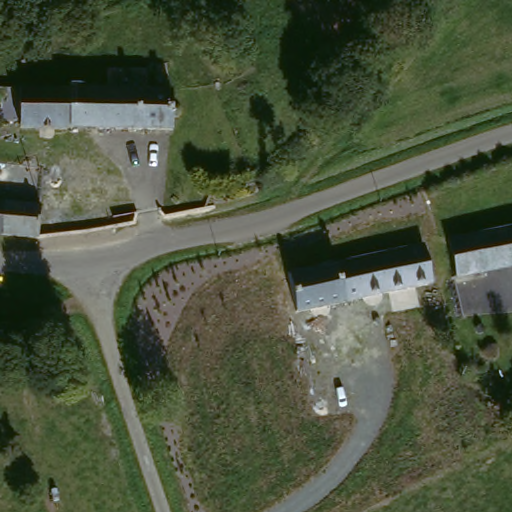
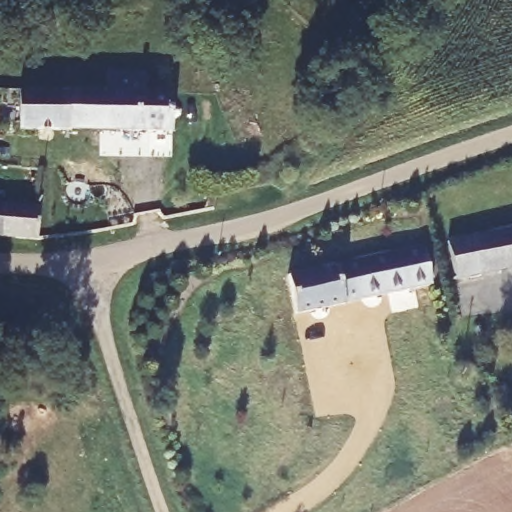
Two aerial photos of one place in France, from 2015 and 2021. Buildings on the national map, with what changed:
unchanged [(143,93),(170,92),(170,130),(19,134),(17,95),(67,95),(109,94),(108,75),(142,74),(143,93)]
unchanged [(0,242),(0,210),(35,210),(34,240),(0,242)]
unchanged [(512,234),(512,275),(445,288),(440,248),(512,234)]
unchanged [(445,288),(291,318),(284,279),(336,269),(332,251),(405,237),(409,255),(440,248),(445,288)]

